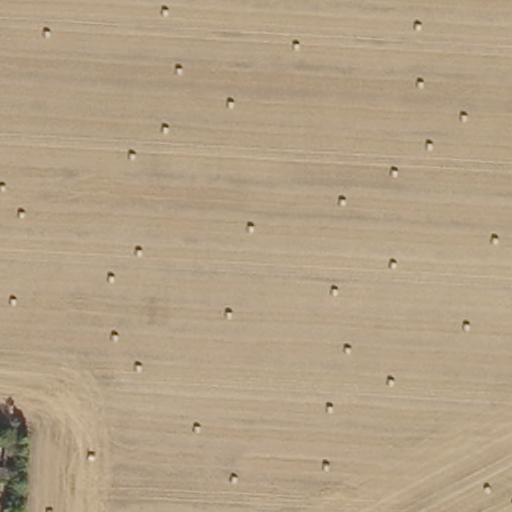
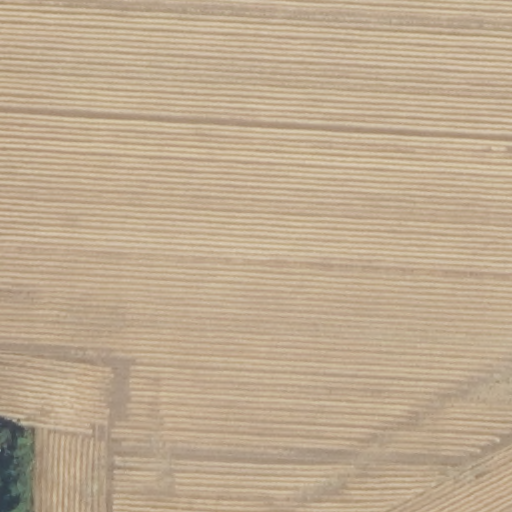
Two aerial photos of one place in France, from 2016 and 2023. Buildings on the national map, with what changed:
[]

